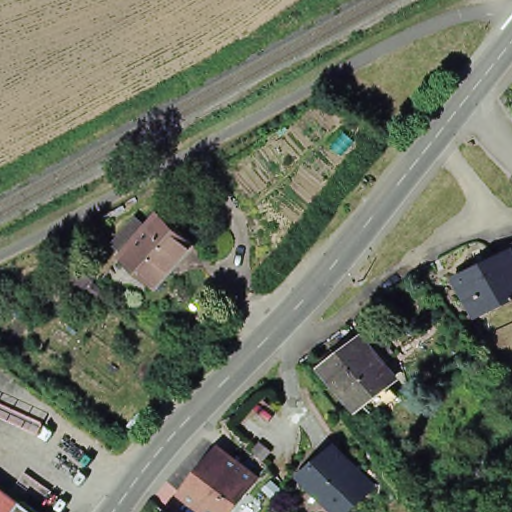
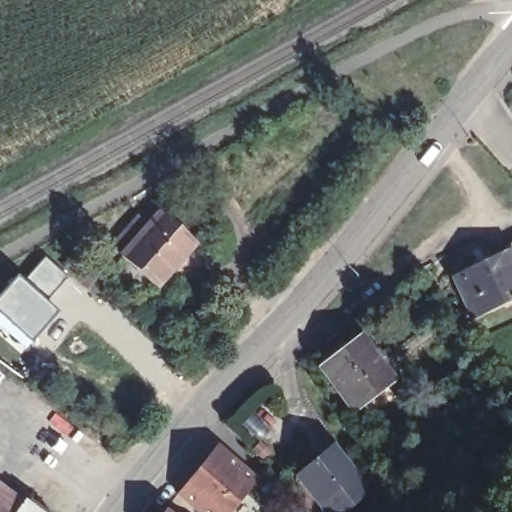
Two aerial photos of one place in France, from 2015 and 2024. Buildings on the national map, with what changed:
unchanged [(195,245),(162,280),(155,286),(137,273),(120,257),(123,253),(113,243),(136,217),(147,227),(160,213),(195,245)]
unchanged [(498,242),(512,236),(512,272),(501,250),(498,242)]
unchanged [(446,277),(501,250),(512,272),(512,291),(464,314),(446,277)]
new [(23,280),(44,256),(67,276),(45,300),(57,311),(30,343),(0,315),(0,294),(17,275),(23,280)]
unchanged [(65,267),(73,256),(96,276),(87,287),(65,267)]
unchanged [(345,404),(313,363),(350,336),(363,353),(368,349),(376,358),(370,362),(381,376),(375,380),(385,393),(360,413),(350,400),(345,404)]
unchanged [(204,512),(178,490),(216,442),(256,476),(228,512),(204,512)]
unchanged [(326,512),(298,474),(335,449),(367,494),(342,512),(326,512)]
unchanged [(17,512),(0,512),(0,495),(16,508),(19,509),(17,512)]
unchanged [(17,512),(19,509),(16,508),(20,504),(30,512),(17,512)]

